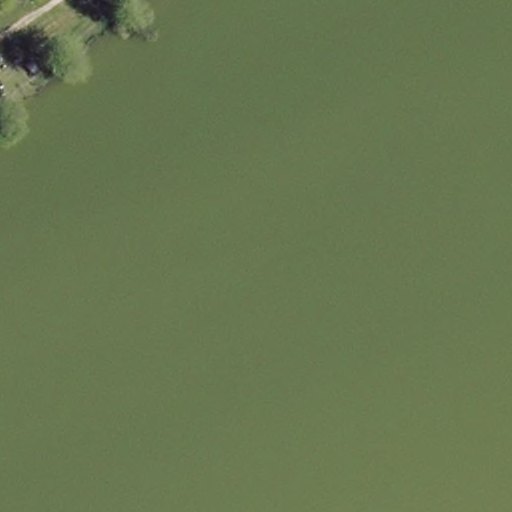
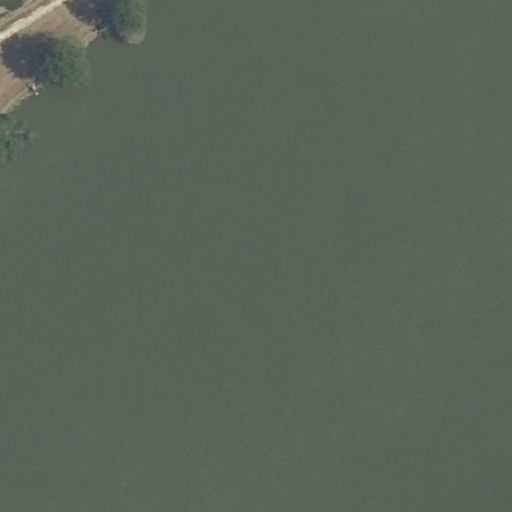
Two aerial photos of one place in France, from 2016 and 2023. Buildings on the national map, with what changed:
[]

